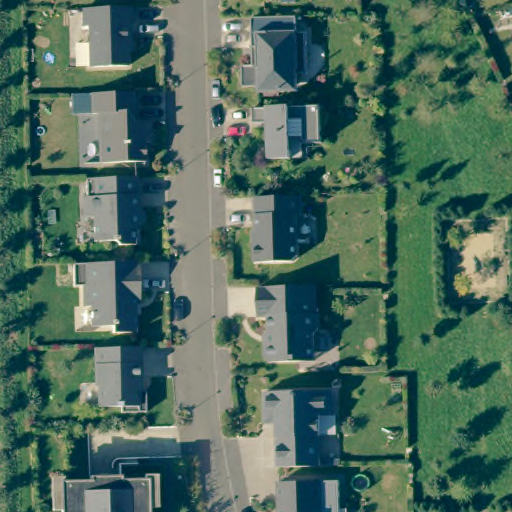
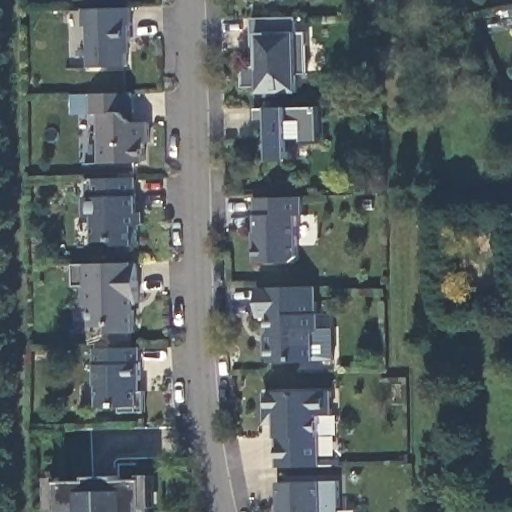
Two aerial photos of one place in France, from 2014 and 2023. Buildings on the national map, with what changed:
unchanged [(89,27),(84,27),(84,10),(118,9),(131,9),(132,26),(130,26),(131,44),(128,44),(128,67),(90,68),(89,27)]
unchanged [(285,88),(259,89),(259,83),(243,84),(243,62),(253,61),(253,52),(253,44),(252,14),(287,13),(297,13),(297,28),(307,28),(308,70),(301,70),(301,88),(285,88)]
unchanged [(139,94),(139,114),(135,114),(135,119),(139,124),(154,123),(155,143),(149,143),(150,163),(105,164),(104,115),(97,115),(96,95),(139,94)]
unchanged [(258,109),(322,107),(323,144),(304,145),(304,140),(292,140),(292,160),(269,161),(268,122),(255,122),(254,109),(258,109)]
unchanged [(109,179),(118,179),(136,178),(136,198),(136,216),(144,216),(144,224),(139,227),(140,246),(119,246),(114,242),(94,242),(94,218),(84,218),(83,198),(86,198),(86,180),(109,179)]
unchanged [(303,198),(303,216),(297,216),(298,258),(293,263),(256,264),(255,242),(258,242),(257,199),(303,198)]
unchanged [(138,263),(141,263),(144,263),(145,303),(140,304),(141,333),(118,334),(118,327),(98,327),(97,307),(90,307),(89,287),(79,287),(79,265),(138,263)]
unchanged [(309,283),(309,298),(322,297),(322,310),(324,310),(324,326),(319,331),(320,357),(276,358),(271,354),(271,343),(275,338),(274,312),(264,313),(264,284),(309,283)]
unchanged [(140,348),(141,381),(138,381),(139,392),(146,392),(146,413),(121,414),(121,408),(98,408),(98,387),(96,387),(95,349),(140,348)]
unchanged [(332,392),(332,416),(320,417),(321,467),(279,468),(278,421),(266,421),(265,393),(332,392)]
unchanged [(90,480),(90,476),(121,476),(121,480),(148,479),(149,512),(61,512),(60,481),(90,480)]
unchanged [(340,512),(286,512),(286,502),(280,502),(280,483),(340,481),(340,512)]

